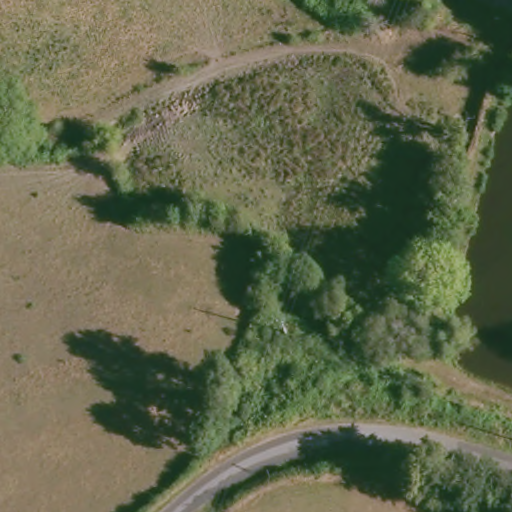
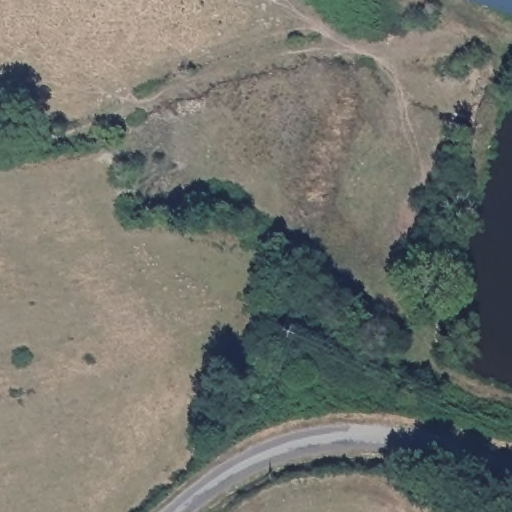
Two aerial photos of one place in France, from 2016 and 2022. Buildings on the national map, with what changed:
unchanged [(512,13),(473,0),(512,0),(512,13)]
unchanged [(253,420),(251,431),(240,427),(244,416),(253,420)]

